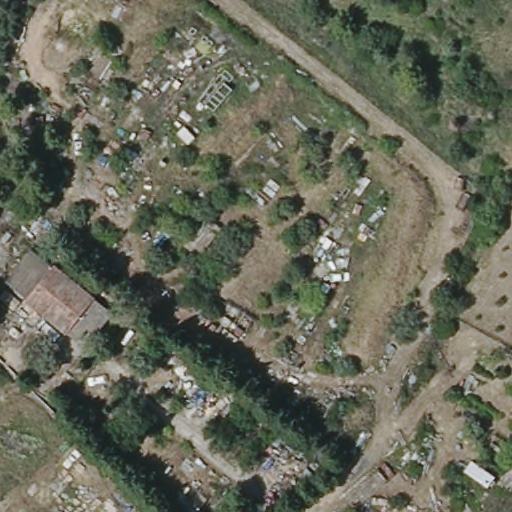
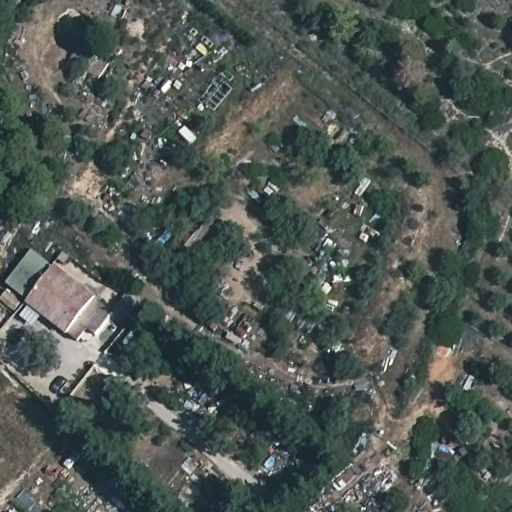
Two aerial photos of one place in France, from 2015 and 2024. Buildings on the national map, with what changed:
unchanged [(106,350),(99,343),(89,356),(16,297),(42,264),(123,329),(106,350)]

